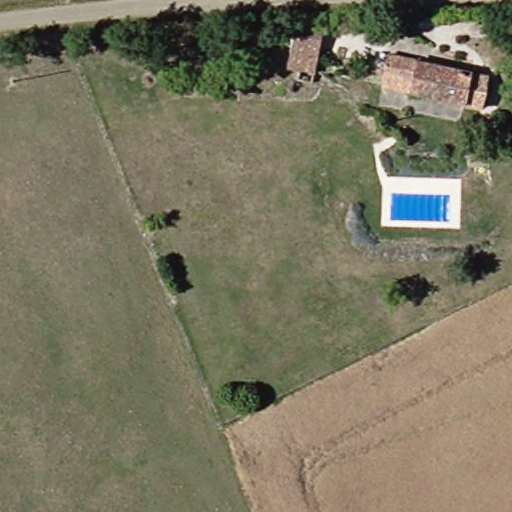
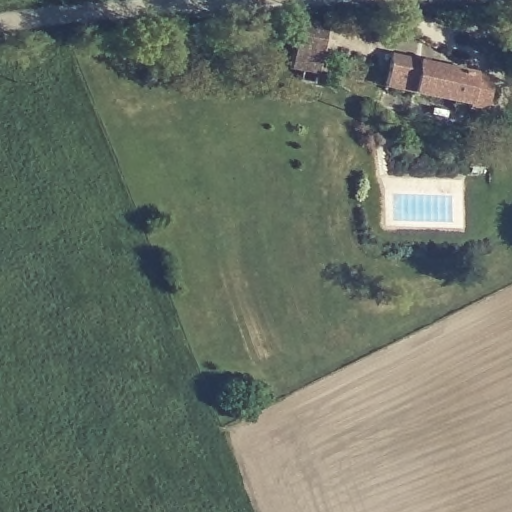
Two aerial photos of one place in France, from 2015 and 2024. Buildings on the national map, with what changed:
unchanged [(296,23),(328,31),(313,89),(295,86),(297,74),(283,72),(296,23)]
unchanged [(427,66),(478,75),(474,103),(392,88),(395,68),(426,74),(427,66)]

